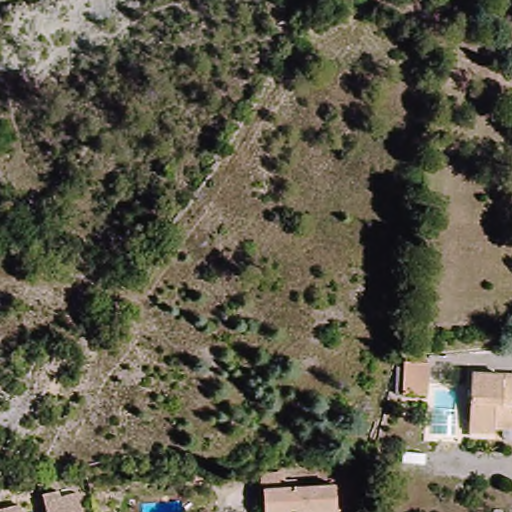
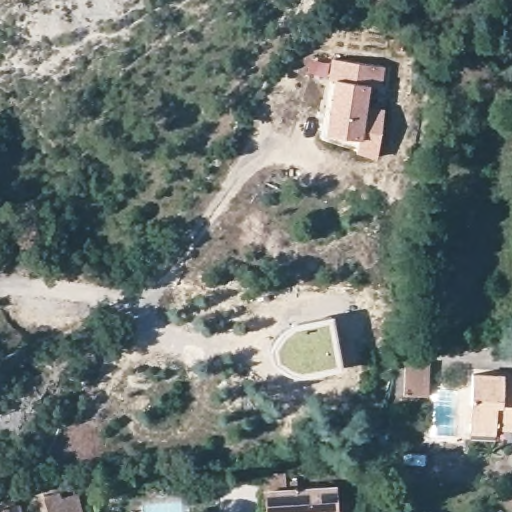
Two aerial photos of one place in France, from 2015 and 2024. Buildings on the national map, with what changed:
new [(355,151),(358,138),(325,133),(334,79),(329,79),(332,59),(384,67),(382,87),(369,84),(366,106),(385,109),(377,158),(355,151)]
new [(274,341),(287,327),(300,322),(331,315),(341,366),(302,373),(294,373),(285,369),(276,362),(272,353),(271,347),(274,341)]
unchanged [(405,395),(406,366),(426,367),(425,396),(405,395)]
unchanged [(491,430),(491,432),(470,432),(469,376),(512,375),(512,430),(491,430)]
unchanged [(282,488),(281,482),(296,481),(297,488),(332,486),(333,510),(340,509),(340,512),(258,512),(257,490),(282,488)]
unchanged [(49,492),(64,489),(65,495),(66,495),(82,491),(86,512),(53,512),(49,492)]
unchanged [(0,507),(23,501),(25,512),(0,512),(0,507)]

